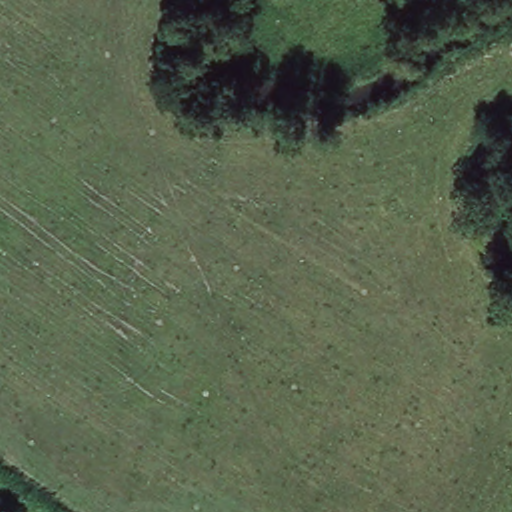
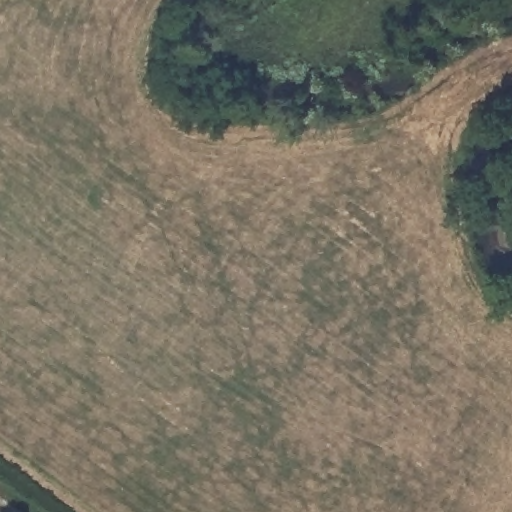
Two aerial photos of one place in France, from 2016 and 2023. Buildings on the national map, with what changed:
[]

